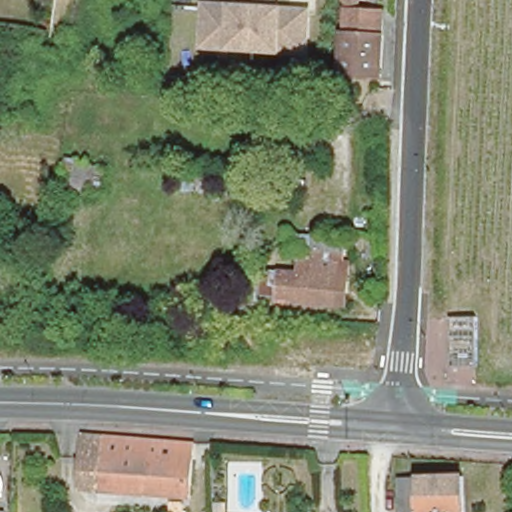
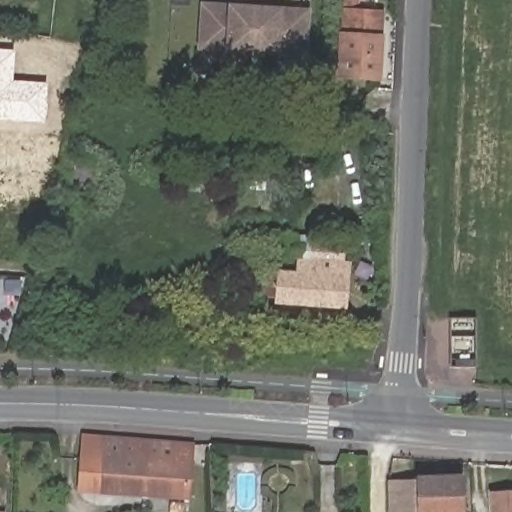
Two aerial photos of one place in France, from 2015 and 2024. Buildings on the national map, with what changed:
unchanged [(236,0),(273,0),(272,10),(306,11),(303,54),(200,48),(202,5),(235,7),(236,0)]
unchanged [(339,4),(339,0),(362,0),(361,5),(339,4)]
unchanged [(338,13),(359,15),(378,16),(376,43),(374,82),(334,80),(335,78),(338,13)]
new [(15,50),(13,80),(47,82),(45,122),(0,120),(0,49),(15,50)]
unchanged [(100,197),(65,188),(71,165),(105,174),(100,197)]
unchanged [(226,326),(229,305),(231,280),(258,282),(291,285),(293,263),(335,267),(333,288),(337,289),(335,314),(256,307),(255,328),(226,326)]
unchanged [(454,362),(454,317),(478,317),(478,362),(454,362)]
unchanged [(206,452),(192,450),(189,495),(80,489),(84,434),(206,442),(206,452)]
unchanged [(398,478),(461,475),(462,512),(400,512),(398,478)]
new [(491,489),(512,488),(512,512),(493,512),(491,489)]

